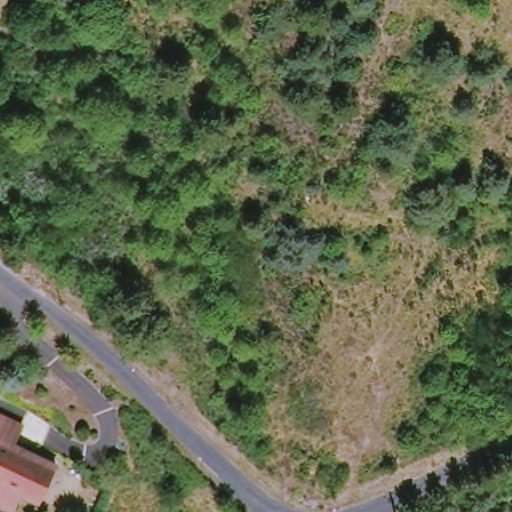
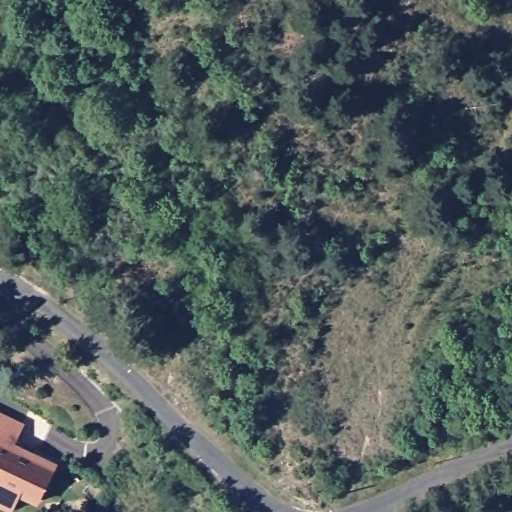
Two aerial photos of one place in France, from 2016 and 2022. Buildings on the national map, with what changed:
unchanged [(19,444),(59,463),(42,497),(25,490),(17,506),(0,498),(0,410),(29,424),(19,444)]

